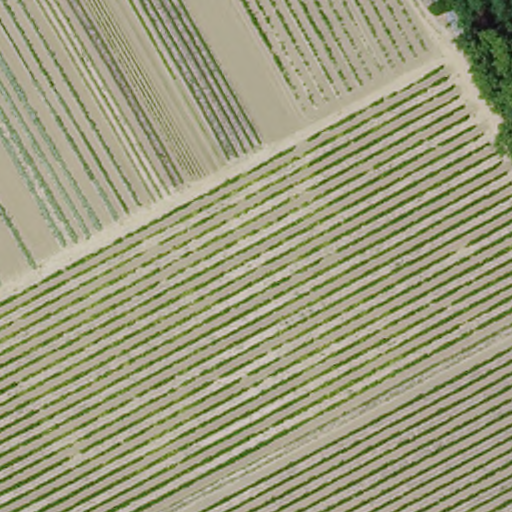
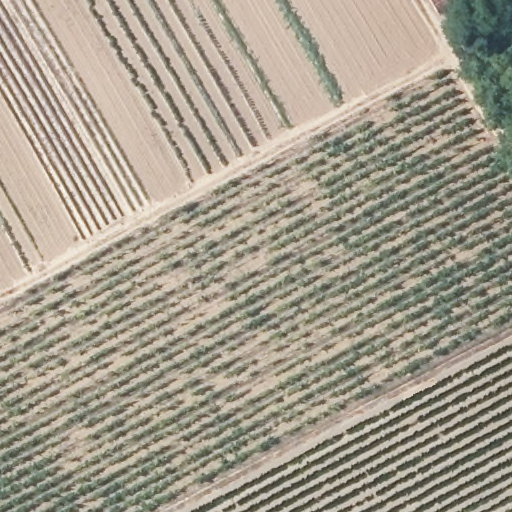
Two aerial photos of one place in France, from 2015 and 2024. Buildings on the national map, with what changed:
unchanged [(439,11),(433,0),(455,0),(456,1),(439,11)]

